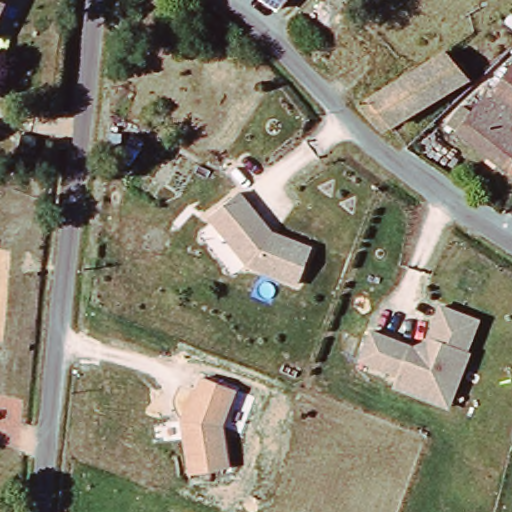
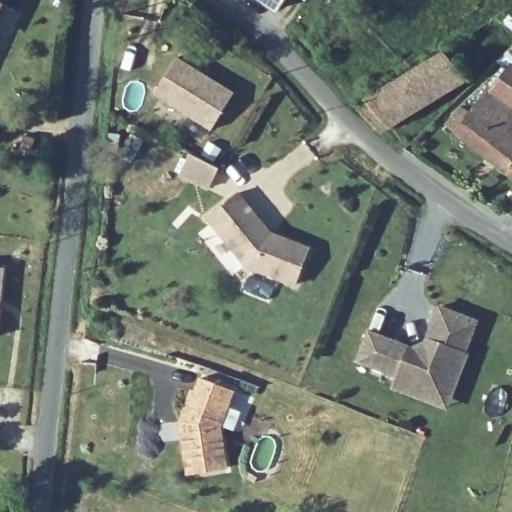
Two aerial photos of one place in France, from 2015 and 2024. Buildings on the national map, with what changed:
unchanged [(0,0),(3,0),(0,7),(0,0)]
unchanged [(258,0),(287,0),(278,14),(258,0)]
unchanged [(443,50),(465,77),(382,131),(359,106),(443,50)]
new [(175,56),(232,90),(209,127),(152,93),(175,56)]
unchanged [(512,69),(512,105),(491,90),(508,66),(512,69)]
unchanged [(512,105),(512,177),(448,130),(462,110),(471,117),(491,90),(512,105)]
new [(186,157),(213,170),(205,188),(178,175),(186,157)]
unchanged [(271,229),(310,246),(297,282),(246,260),(209,210),(240,187),(271,229)]
new [(0,301),(0,269),(3,269),(0,301)]
unchanged [(362,358),(374,330),(418,347),(431,340),(445,305),(482,320),(470,351),(462,348),(450,378),(432,386),(401,374),(362,358)]
unchanged [(470,351),(473,353),(451,407),(396,384),(401,374),(432,386),(450,378),(462,348),(470,351)]
unchanged [(178,417),(190,385),(193,386),(198,373),(231,386),(218,422),(223,465),(186,470),(180,434),(178,421),(178,417)]

